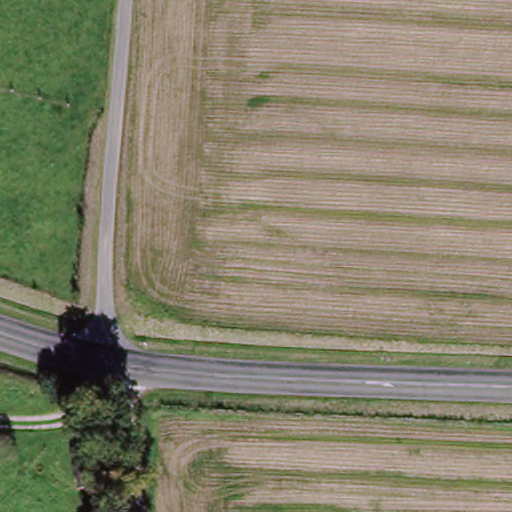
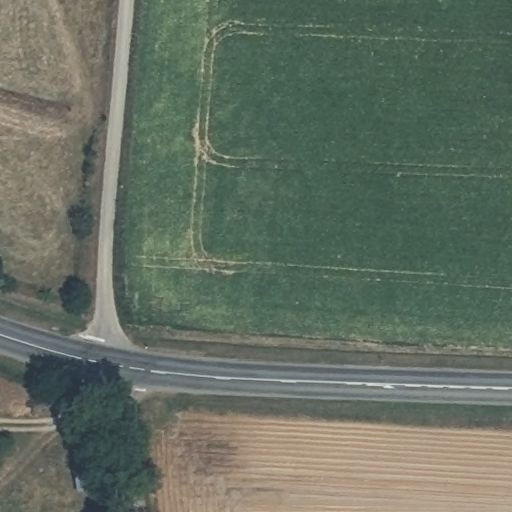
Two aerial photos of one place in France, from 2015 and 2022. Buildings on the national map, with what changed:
unchanged [(82,497),(72,432),(93,431),(101,495),(82,497)]

